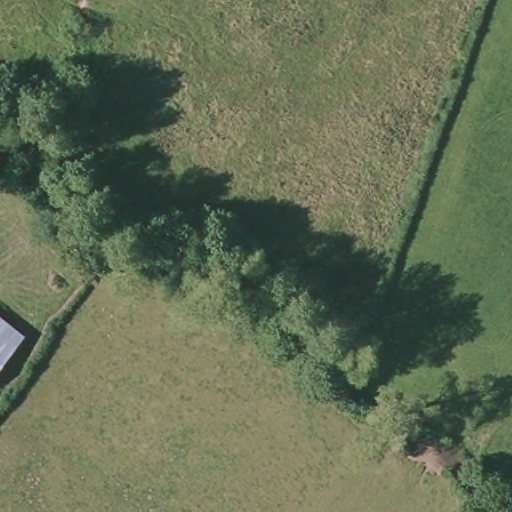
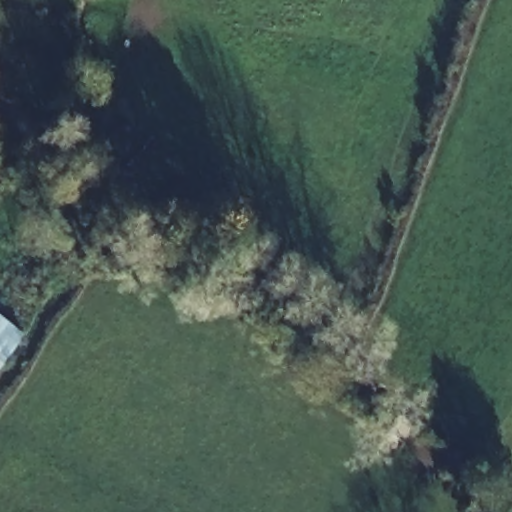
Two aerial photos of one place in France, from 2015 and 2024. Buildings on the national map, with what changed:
unchanged [(25,338),(2,365),(0,368),(0,316),(25,338)]

